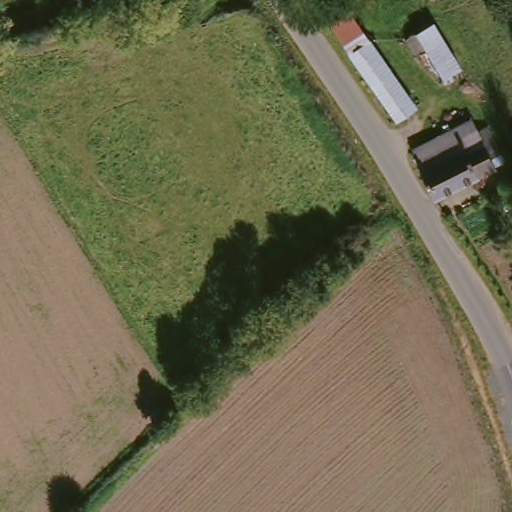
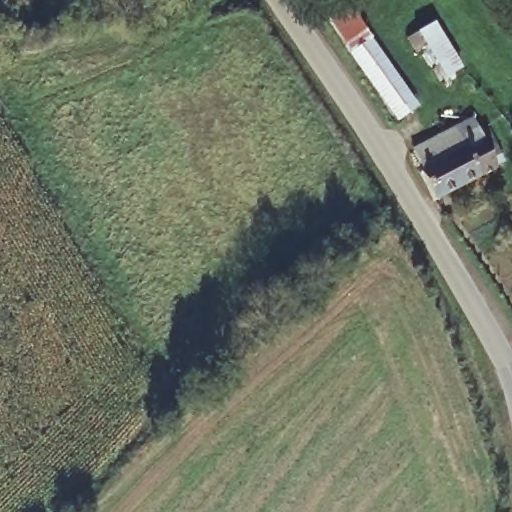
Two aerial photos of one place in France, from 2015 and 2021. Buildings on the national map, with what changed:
unchanged [(421,109),(400,124),(322,10),(339,0),(345,0),(421,109)]
unchanged [(467,75),(446,88),(416,35),(437,20),(467,75)]
unchanged [(471,119),(477,130),(486,125),(493,141),(484,146),(477,136),(421,166),(412,149),(471,119)]
unchanged [(423,170),(421,166),(477,136),(484,146),(493,141),(500,154),(504,160),(493,165),(494,167),(434,199),(420,171),(423,170)]

